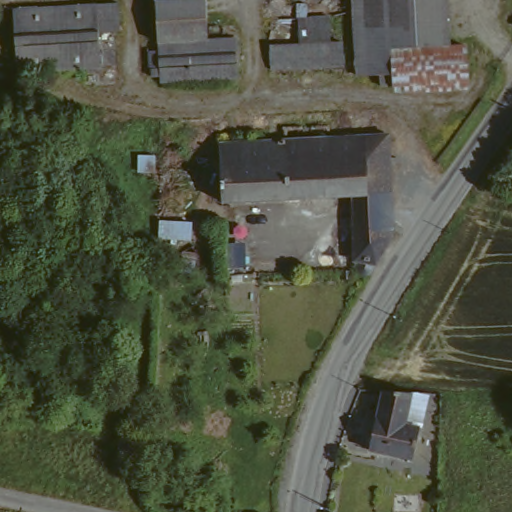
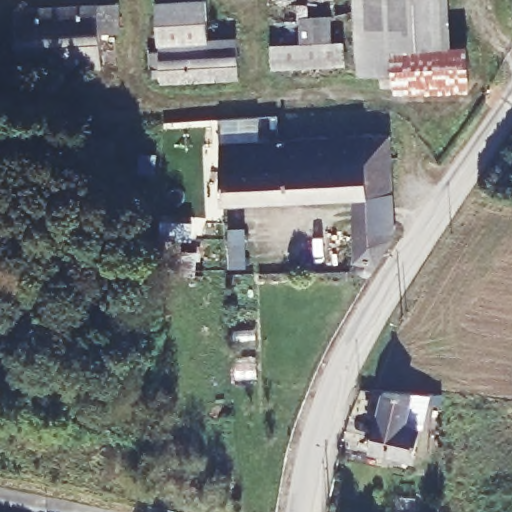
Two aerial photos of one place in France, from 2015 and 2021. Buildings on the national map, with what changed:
unchanged [(204,1),(207,44),(236,42),(239,79),(161,85),(160,81),(152,82),(150,59),(157,58),(154,0),(198,0),(199,1),(204,1)]
unchanged [(380,81),(357,81),(351,0),(386,0),(392,90),(381,90),(380,81)]
unchanged [(442,0),(446,49),(462,48),(465,85),(465,95),(393,98),(392,90),(386,0),(442,0)]
unchanged [(11,15),(112,8),(114,36),(94,37),(96,71),(14,77),(11,15)]
unchanged [(268,20),(313,19),(327,18),(329,45),(341,44),(341,65),(268,69),(268,46),(268,20)]
unchanged [(367,276),(360,277),(357,276),(355,276),(354,275),(353,273),(353,270),(350,268),(350,257),(348,199),(218,206),(215,151),(280,146),(280,132),(324,130),(325,144),(384,140),(390,216),(392,237),(381,254),(367,276)]
unchanged [(190,240),(162,240),(161,222),(186,221),(190,221),(190,240)]
unchanged [(196,251),(205,251),(204,275),(194,275),(196,251)]
unchanged [(375,460),(376,392),(402,392),(418,392),(418,427),(417,460),(375,460)]
unchanged [(123,436),(142,440),(137,472),(118,468),(123,436)]

